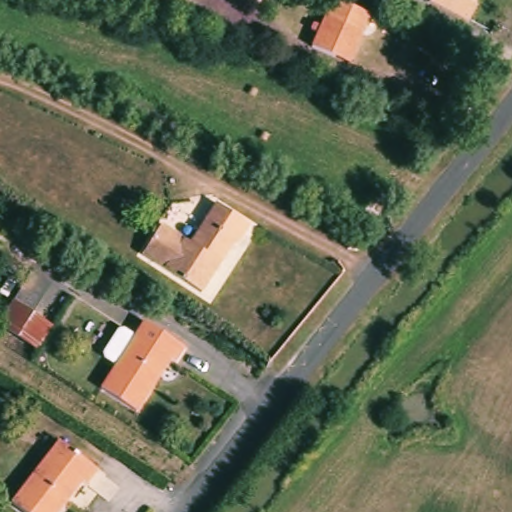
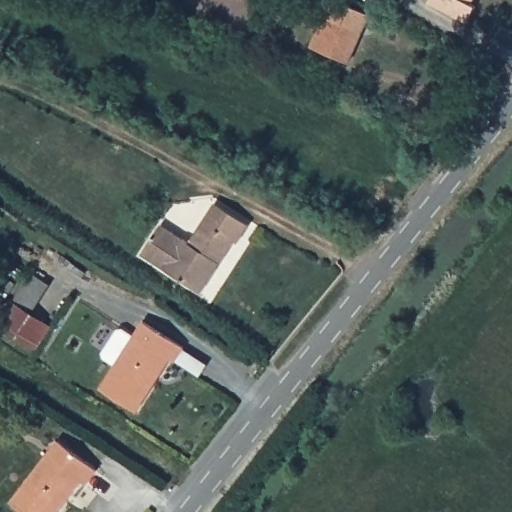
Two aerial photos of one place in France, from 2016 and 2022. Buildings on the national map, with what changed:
unchanged [(330,58),(307,48),(313,34),(305,30),(308,24),(316,27),(327,0),(331,0),(365,14),(357,33),(344,64),(330,58)]
unchanged [(433,0),(472,0),(476,2),(467,18),(433,0)]
unchanged [(233,248),(230,246),(197,298),(137,259),(157,229),(185,248),(211,208),(245,230),(233,248)]
unchanged [(32,349),(0,329),(0,313),(8,301),(47,326),(32,349)]
unchanged [(101,394),(116,370),(104,362),(103,358),(118,334),(123,333),(134,341),(144,326),(185,352),(176,367),(170,363),(136,416),(101,394)]
unchanged [(54,440),(93,470),(82,485),(78,482),(54,512),(18,512),(6,503),(54,440)]

